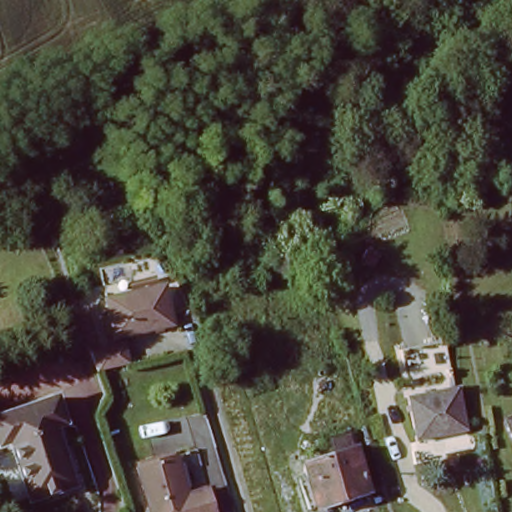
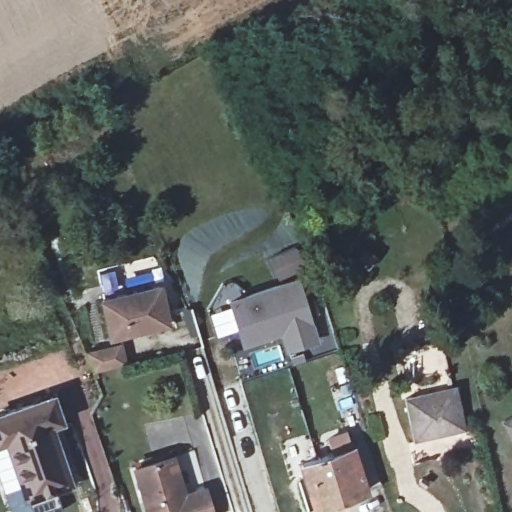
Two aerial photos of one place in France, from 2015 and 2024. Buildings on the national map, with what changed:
unchanged [(301,244),(311,261),(287,275),(277,257),(301,244)]
new [(302,276),(320,341),(287,351),(283,335),(243,347),(228,298),(302,276)]
unchanged [(169,320),(114,340),(101,303),(156,283),(169,320)]
unchanged [(95,370),(92,363),(91,359),(88,352),(121,340),(127,358),(95,370)]
unchanged [(450,382),(467,425),(419,444),(403,401),(450,382)]
unchanged [(21,402),(49,393),(57,419),(48,423),(70,486),(58,491),(52,493),(46,479),(21,487),(4,440),(0,441),(0,410),(21,402)]
unchanged [(500,418),(512,413),(512,443),(500,418)]
unchanged [(307,465),(336,457),(331,439),(352,434),(370,496),(319,512),(307,465)]
demolished [(467,439),(478,467),(438,482),(428,455),(467,439)]
unchanged [(208,493),(213,512),(147,512),(135,474),(176,460),(189,500),(204,495),(208,493)]

